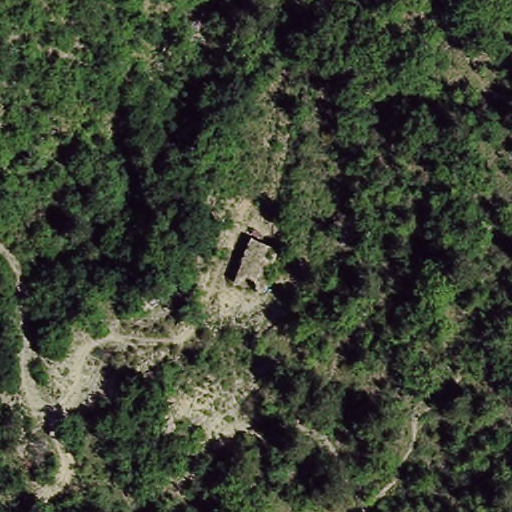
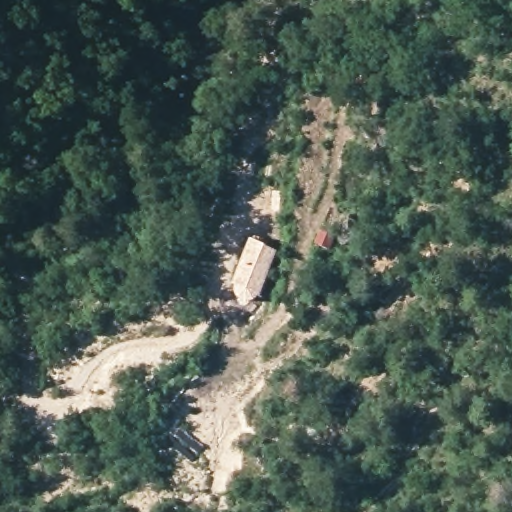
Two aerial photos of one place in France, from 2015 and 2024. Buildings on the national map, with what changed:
unchanged [(248,239),(275,250),(265,289),(237,278),(248,239)]

